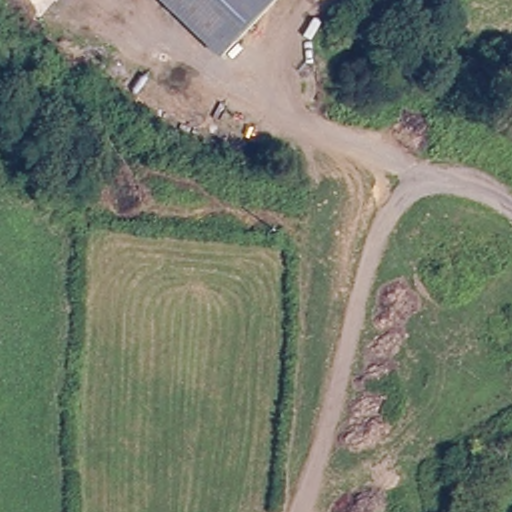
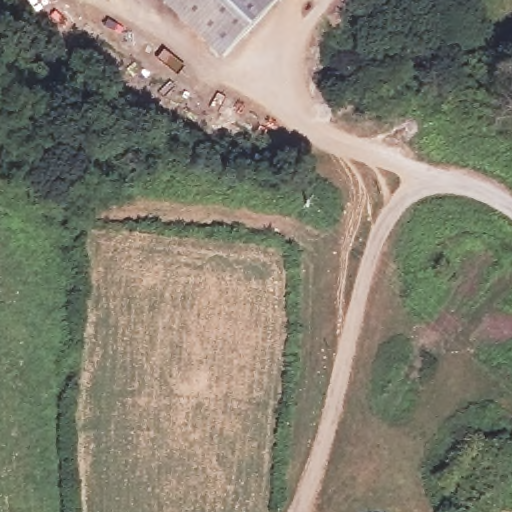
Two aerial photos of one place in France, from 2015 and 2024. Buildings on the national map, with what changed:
unchanged [(163,1),(163,0),(277,0),(280,4),(228,53),(221,60),(208,47),(163,1)]

